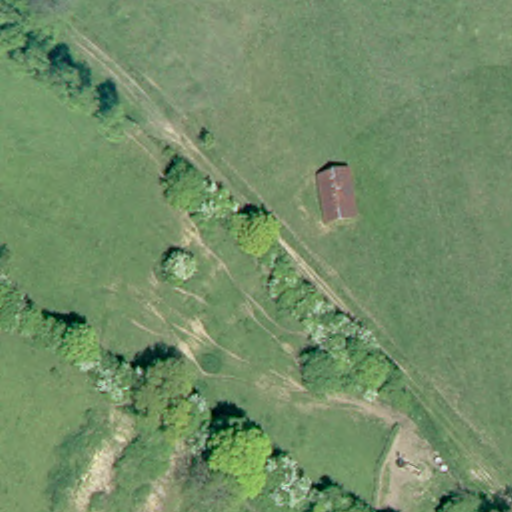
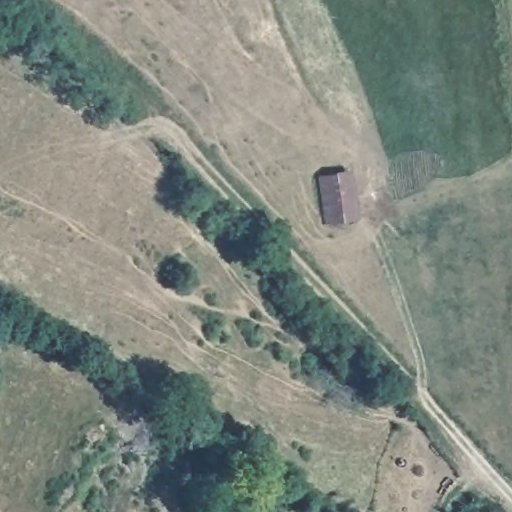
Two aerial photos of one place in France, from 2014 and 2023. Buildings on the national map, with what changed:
unchanged [(328,228),(318,174),(345,170),(353,221),(328,228)]

